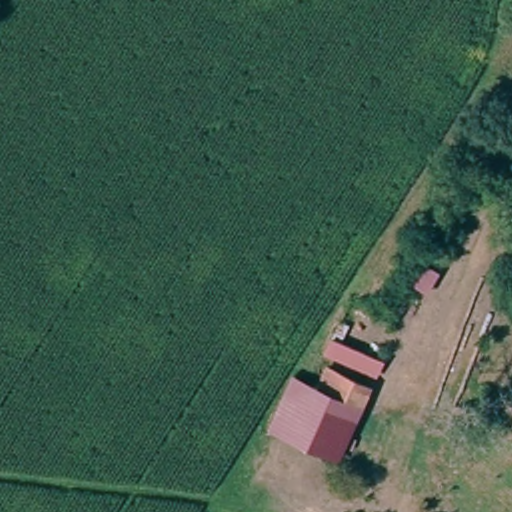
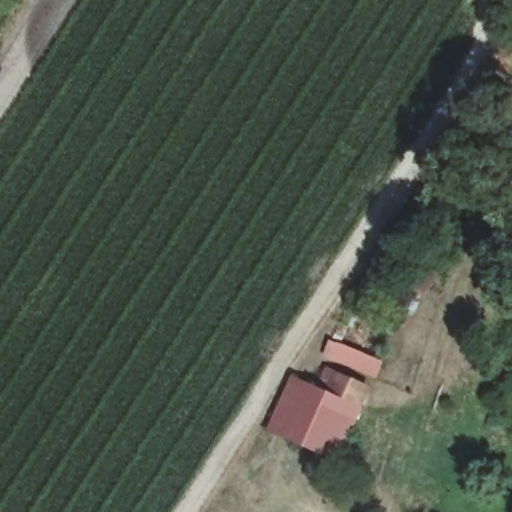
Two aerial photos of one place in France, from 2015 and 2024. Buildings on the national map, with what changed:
unchanged [(370,378),(329,358),(351,308),(390,326),(370,378)]
unchanged [(322,373),(365,391),(333,461),(292,444),(316,389),(322,373)]
unchanged [(289,378),(316,389),(292,444),(266,433),(289,378)]

